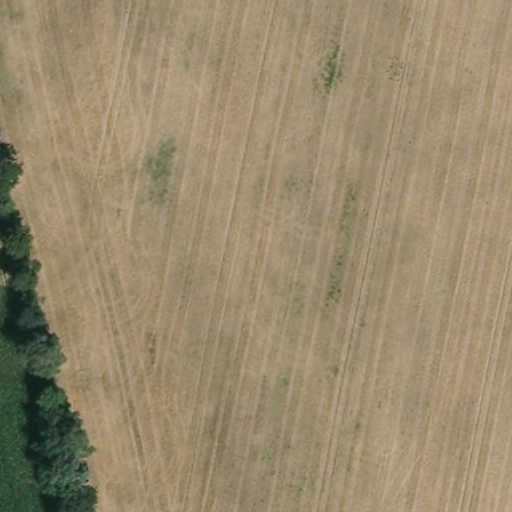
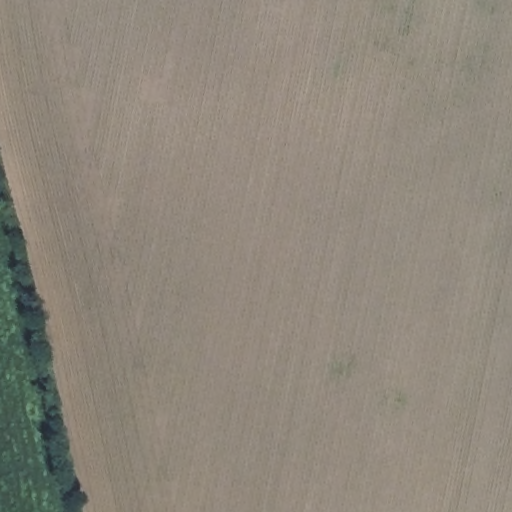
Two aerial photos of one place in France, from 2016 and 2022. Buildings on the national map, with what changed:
[]

